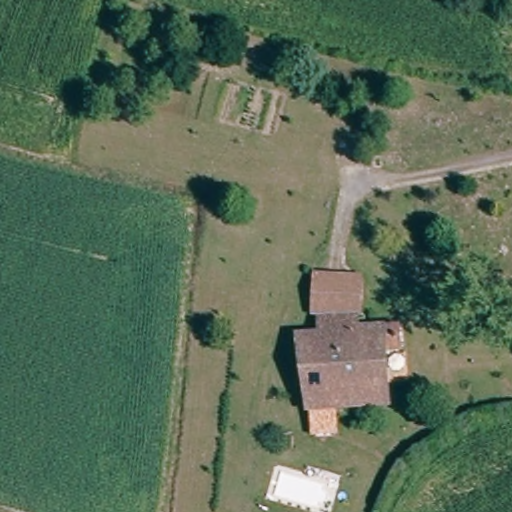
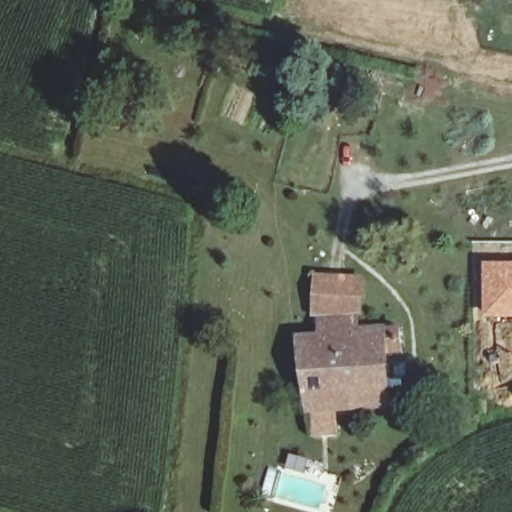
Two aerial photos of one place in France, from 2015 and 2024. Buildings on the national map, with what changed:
new [(482,262),(512,262),(512,319),(483,318),(482,262)]
unchanged [(397,365),(373,365),(373,408),(298,406),(298,337),(322,336),(322,313),(315,313),(316,275),(362,276),(362,319),(357,319),(357,336),(397,338),(397,365)]

